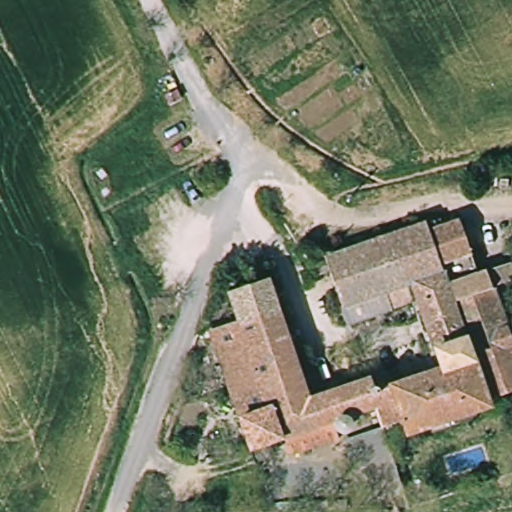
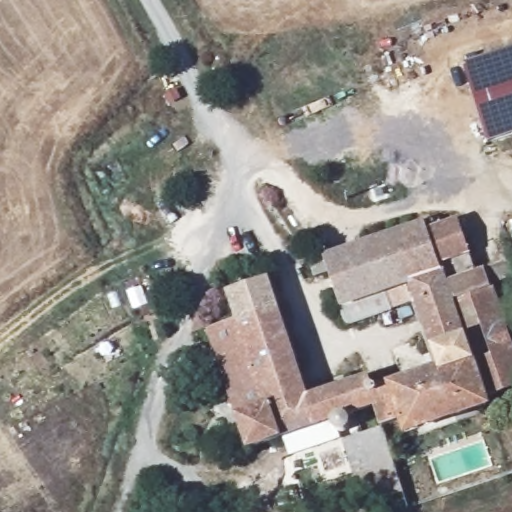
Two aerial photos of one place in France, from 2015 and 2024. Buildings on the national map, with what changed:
new [(489,143),(463,65),(512,49),(512,135),(489,143)]
unchanged [(444,259),(447,269),(407,282),(345,300),(337,272),(325,275),(318,259),(422,223),(430,235),(462,224),(472,249),(444,259)]
unchanged [(480,272),(491,268),(497,284),(457,299),(465,320),(424,333),(407,282),(447,269),(444,259),(472,249),(480,272)]
unchanged [(282,441),(236,325),(225,297),(262,282),(309,401),(319,426),(282,441)]
unchanged [(512,321),(512,396),(502,401),(505,409),(495,413),(497,421),(435,446),(432,438),(423,441),(418,429),(397,438),(383,403),(375,384),(432,356),(424,333),(465,320),(457,299),(497,284),(512,321)]
unchanged [(255,453),(207,337),(236,325),(282,441),(255,453)]
unchanged [(352,414),(358,429),(343,434),(338,419),(319,426),(309,401),(372,376),(375,384),(383,403),(352,414)]
unchanged [(415,488),(372,503),(347,443),(390,428),(415,488)]

